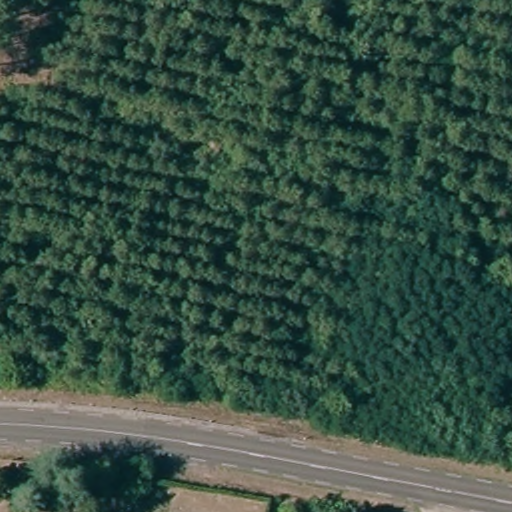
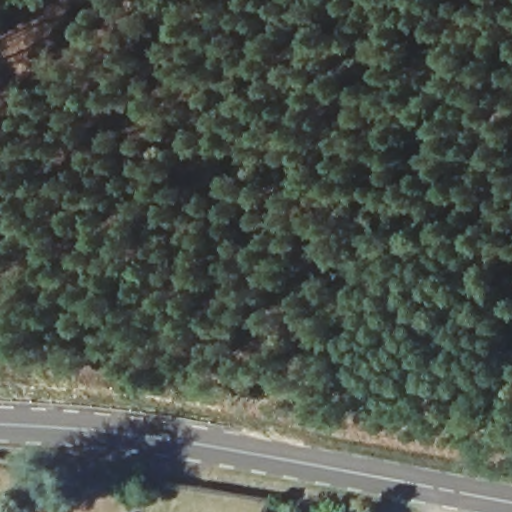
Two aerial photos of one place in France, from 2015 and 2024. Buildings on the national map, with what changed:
[]

